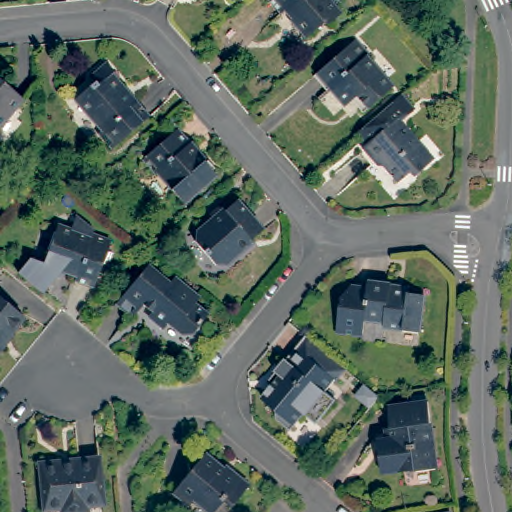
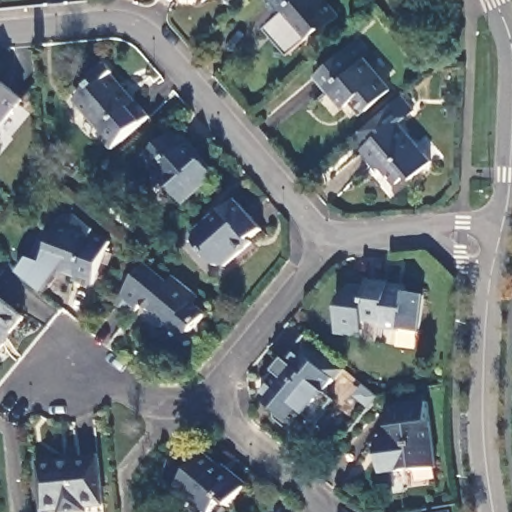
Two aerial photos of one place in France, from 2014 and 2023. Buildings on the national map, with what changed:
unchanged [(340,12),(328,21),(321,21),(305,35),(289,16),(290,15),(283,7),(280,9),(274,0),(330,0),(340,12)]
unchanged [(356,47),(369,62),(366,64),(392,93),(367,114),(356,102),(346,111),(318,78),(356,47)]
unchanged [(105,65),(113,73),(112,75),(126,91),(124,94),(133,104),(135,102),(149,117),(111,150),(98,135),(102,131),(79,102),(90,92),(89,89),(94,85),(89,79),(105,65)]
unchanged [(0,127),(0,82),(22,99),(0,127)]
unchanged [(431,162),(413,177),(408,174),(397,182),(383,166),(377,166),(363,149),(396,121),(431,162)]
unchanged [(215,177),(185,205),(173,191),(172,188),(159,172),(156,175),(143,161),(176,132),(215,177)]
unchanged [(191,229),(219,205),(220,206),(233,197),(258,227),(248,234),(248,238),(215,266),(189,236),(191,229)]
unchanged [(89,283),(70,277),(71,272),(39,260),(54,223),(85,234),(86,232),(105,238),(89,283)]
unchanged [(190,300),(202,311),(190,328),(178,329),(165,318),(160,323),(145,312),(147,308),(139,302),(130,312),(114,298),(143,263),(165,280),(170,273),(181,283),(195,293),(190,300)]
unchanged [(383,286),(384,279),(406,282),(405,287),(425,291),(424,293),(440,296),(433,332),(397,327),(398,322),(378,318),(376,334),(350,330),(356,295),(371,284),(383,286)]
unchanged [(2,342),(5,345),(0,350),(0,299),(22,318),(2,342)]
unchanged [(315,396),(300,413),(297,412),(288,422),(279,423),(271,417),(271,408),(258,397),(257,393),(266,383),(262,380),(270,370),(279,358),(282,360),(292,347),(340,387),(331,399),(326,405),(315,396)]
unchanged [(438,461),(416,463),(416,461),(405,462),(405,463),(382,467),(379,441),(389,440),(386,422),(392,421),(389,399),(428,393),(438,461)]
unchanged [(204,452),(226,471),(229,469),(246,483),(231,502),(225,497),(212,510),(195,497),(189,503),(172,490),(204,452)]
unchanged [(99,455),(102,501),(86,502),(86,507),(61,510),(60,505),(43,507),(40,460),(99,455)]

